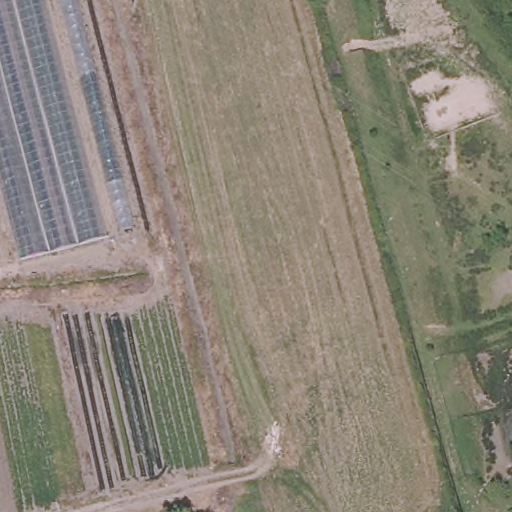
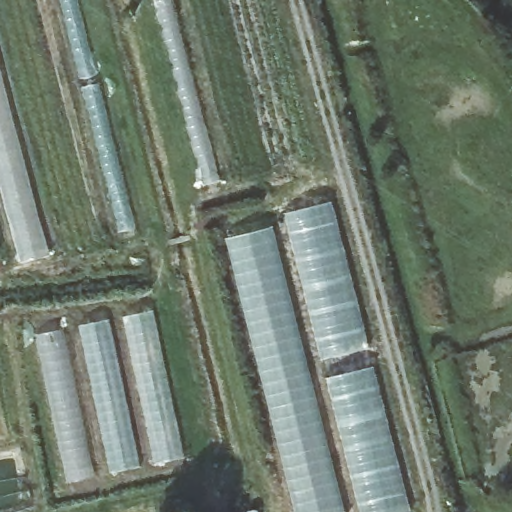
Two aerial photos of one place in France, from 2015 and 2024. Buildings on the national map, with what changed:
unchanged [(0,190),(0,0),(44,0),(107,239),(19,262),(0,190)]
unchanged [(119,234),(60,0),(77,0),(134,231),(119,234)]
new [(205,192),(154,0),(174,0),(223,187),(205,192)]
new [(370,348),(321,361),(283,213),(330,201),(370,348)]
new [(225,244),(275,232),(350,512),(293,512),(225,244)]
new [(185,457),(155,462),(123,315),(152,310),(185,457)]
new [(140,466),(110,473),(78,324),(109,319),(140,466)]
new [(95,477),(66,482),(37,334),(63,330),(95,477)]
new [(410,512),(360,512),(325,378),(373,367),(410,512)]

